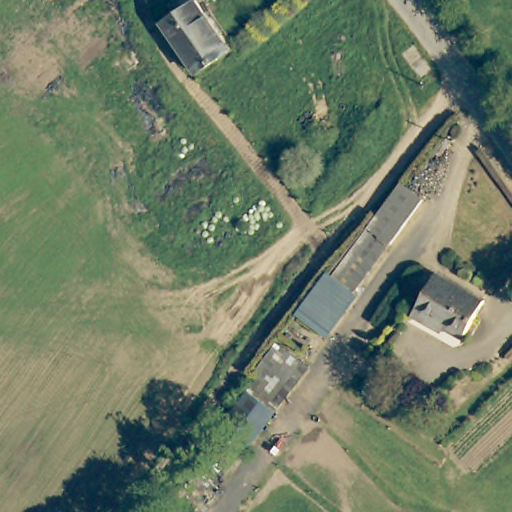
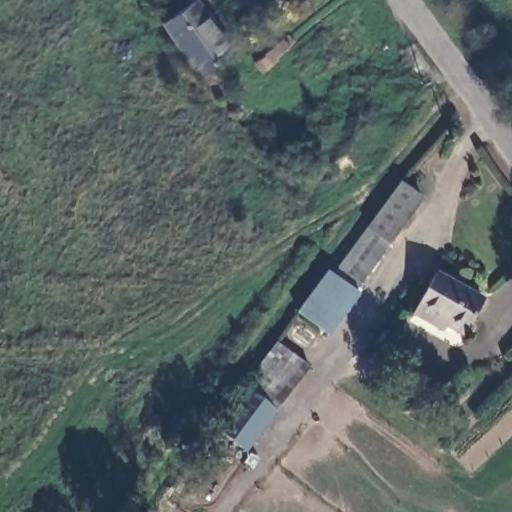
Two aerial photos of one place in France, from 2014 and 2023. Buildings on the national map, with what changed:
unchanged [(161,20),(193,0),(200,0),(230,46),(225,52),(197,72),(161,20)]
unchanged [(407,182),(436,205),(331,336),(299,315),(407,182)]
unchanged [(488,302),(463,340),(417,311),(441,272),(488,302)]
unchanged [(226,422),(283,346),(318,368),(255,447),(226,422)]

